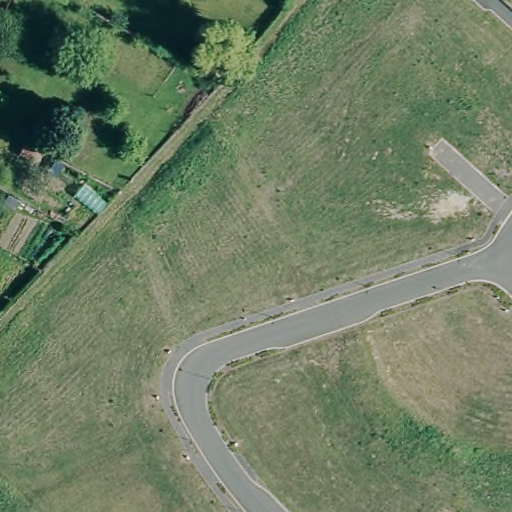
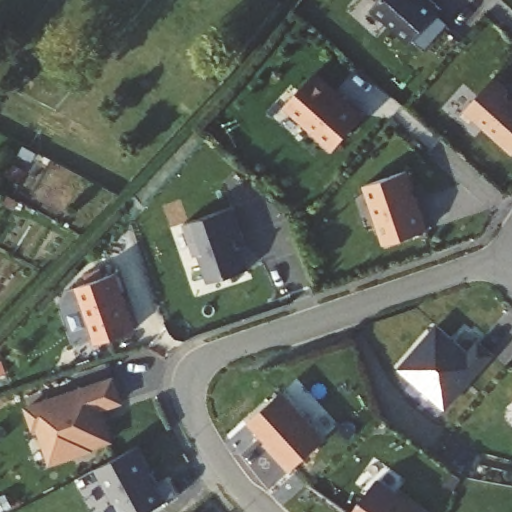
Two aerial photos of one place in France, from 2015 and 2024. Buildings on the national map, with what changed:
new [(380,0),(432,0),(443,9),(412,43),(373,8),(380,0)]
new [(333,151),(285,108),(318,70),(366,114),(333,151)]
new [(512,95),(512,150),(466,109),(495,79),(512,95)]
new [(429,229),(383,244),(364,186),(409,171),(429,229)]
new [(231,211),(248,266),(203,280),(185,225),(231,211)]
new [(138,329),(95,344),(77,287),(119,273),(138,329)]
new [(436,328),(468,356),(479,344),(494,358),(445,414),(398,373),(436,328)]
new [(115,376),(124,404),(104,410),(114,443),(94,449),(93,451),(49,465),(38,431),(33,432),(23,406),(115,376)]
new [(290,472),(264,444),(266,442),(248,423),(285,391),(326,439),(290,472)]
new [(138,449),(166,504),(153,512),(116,512),(94,471),(138,449)]
new [(425,512),(354,512),(378,478),(425,512)]

